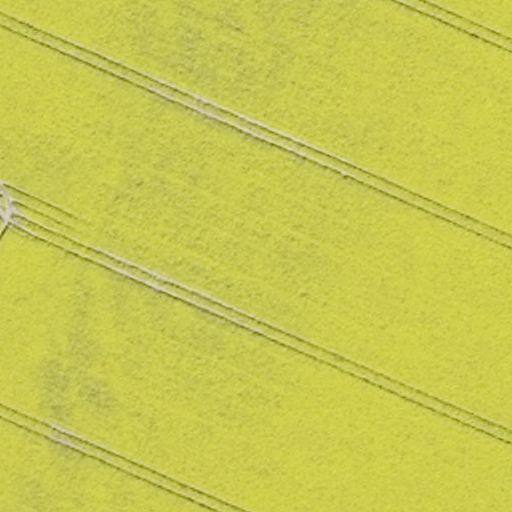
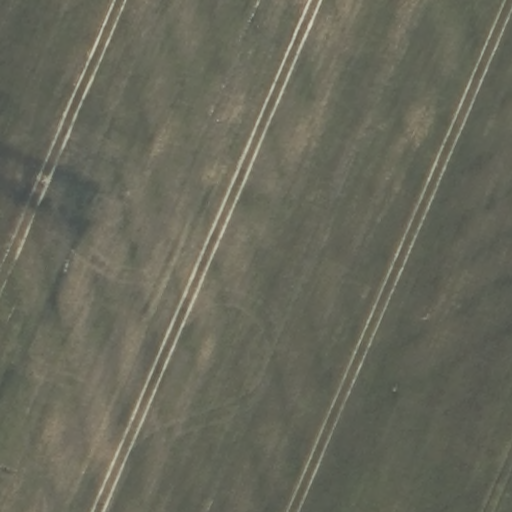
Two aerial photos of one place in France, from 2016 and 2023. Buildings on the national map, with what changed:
[]

